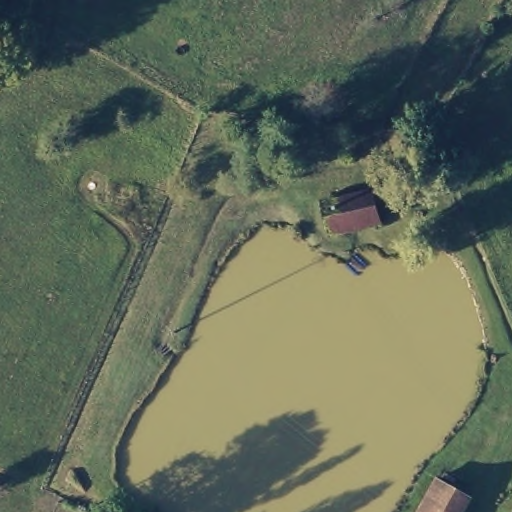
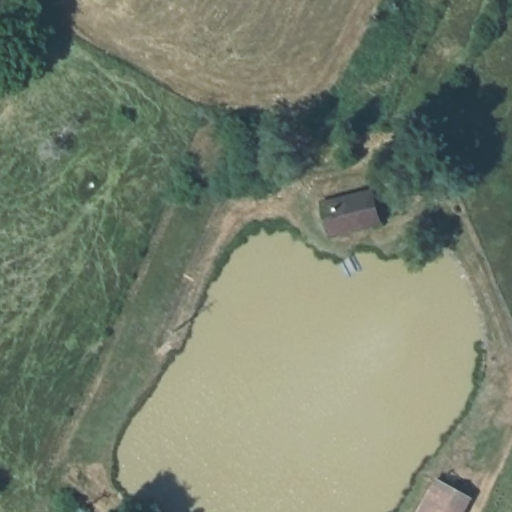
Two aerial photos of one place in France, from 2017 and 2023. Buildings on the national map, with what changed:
unchanged [(377,218),(331,230),(324,203),(370,191),(377,218)]
unchanged [(471,497),(463,512),(415,512),(432,477),(471,497)]

